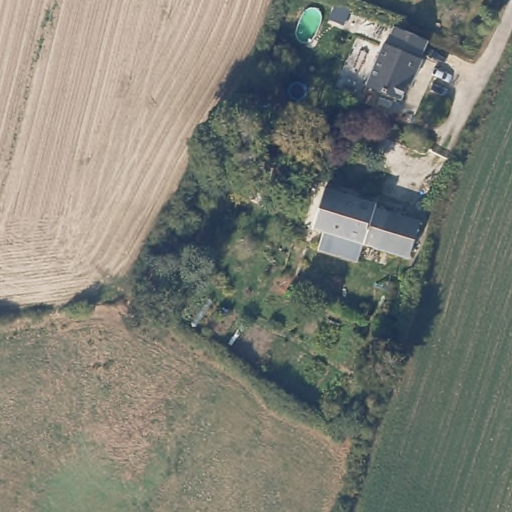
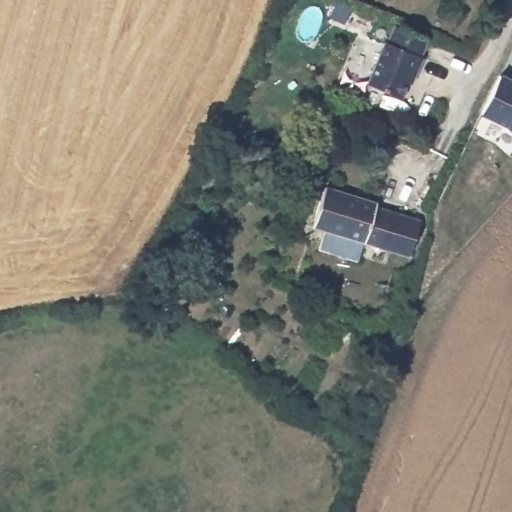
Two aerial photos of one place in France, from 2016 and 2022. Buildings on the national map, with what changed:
unchanged [(408,82),(401,97),(367,82),(386,40),(388,41),(396,25),(428,39),(420,56),(423,57),(415,75),(411,83),(408,82)]
new [(505,126),(480,115),(500,74),(512,80),(512,133),(505,126)]
unchanged [(378,198),(376,204),(418,219),(410,241),(406,255),(399,252),(359,239),(353,257),(316,245),(322,226),(310,222),(324,181),(378,198)]

